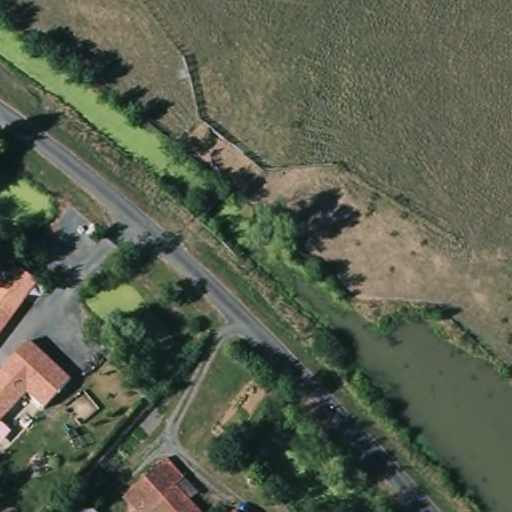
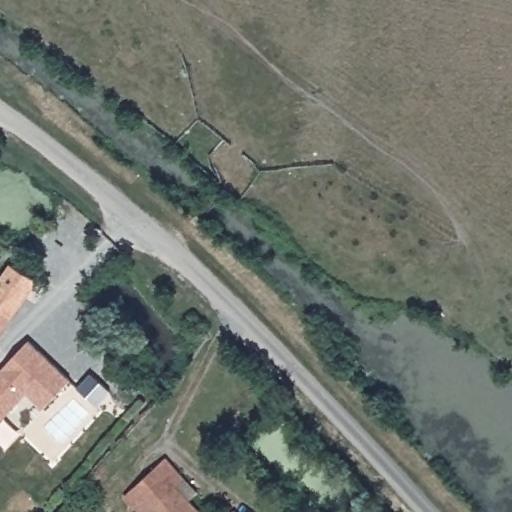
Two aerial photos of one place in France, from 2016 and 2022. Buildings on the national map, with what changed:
unchanged [(39,285),(0,340),(0,280),(9,268),(39,285)]
unchanged [(61,359),(0,420),(0,370),(39,332),(61,359)]
unchanged [(174,460),(191,478),(204,493),(195,500),(206,512),(141,512),(129,499),(174,460)]

